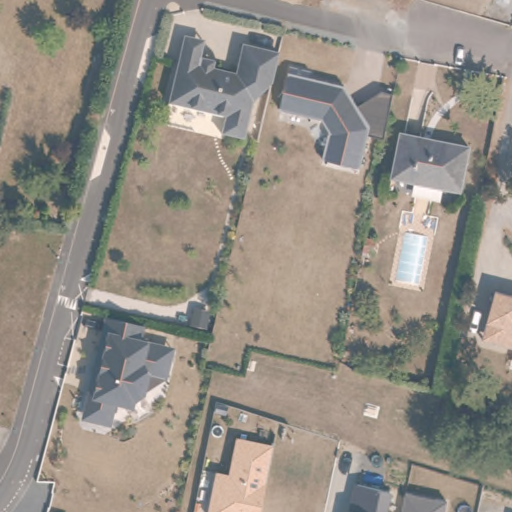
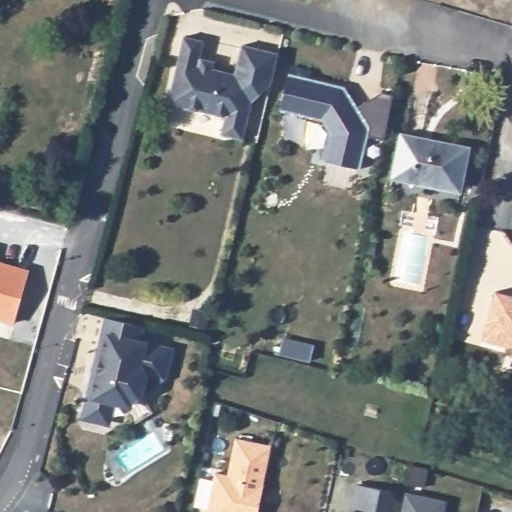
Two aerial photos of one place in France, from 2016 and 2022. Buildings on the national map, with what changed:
unchanged [(252,81),(238,139),(216,134),(220,117),(164,104),(174,61),(179,37),(199,41),(195,58),(209,62),(207,69),(231,75),(237,45),(273,54),(266,84),(252,81)]
unchanged [(357,108),(382,94),(393,97),(385,140),(368,136),(360,169),(322,160),(328,135),(331,134),(322,120),(321,121),(280,111),(292,67),(311,72),(309,78),(345,87),(357,108)]
unchanged [(396,177),(406,134),(473,149),(465,192),(396,177)]
unchanged [(363,254),(367,240),(375,241),(372,256),(363,254)]
new [(32,268),(17,322),(0,317),(0,259),(32,268)]
unchanged [(482,339),(486,322),(495,291),(512,295),(512,347),(496,343),(482,339)]
unchanged [(102,317),(104,318),(139,327),(136,341),(156,346),(169,349),(166,362),(165,367),(161,380),(139,395),(120,406),(111,403),(107,418),(99,423),(85,421),(80,412),(84,395),(91,366),(102,317)]
unchanged [(272,446),(259,512),(205,512),(214,471),(226,474),(234,437),(272,446)]
unchanged [(389,491),(385,512),(349,512),(354,485),(389,491)]
unchanged [(403,493),(447,501),(445,512),(398,512),(403,493)]

